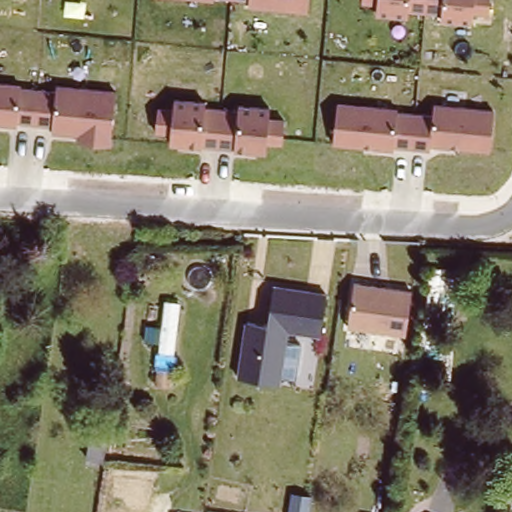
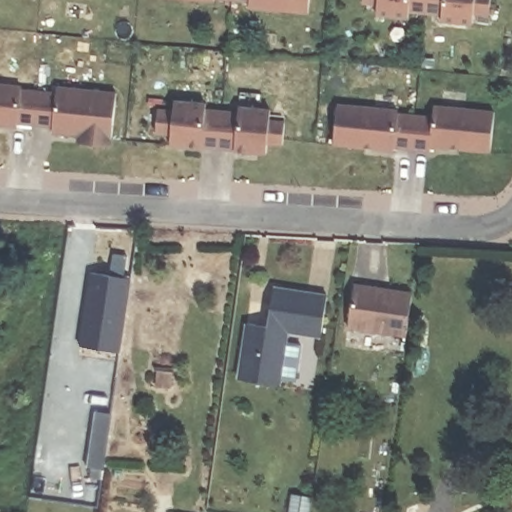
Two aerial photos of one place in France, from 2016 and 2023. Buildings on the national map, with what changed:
unchanged [(247,9),(248,1),(241,0),(310,0),(309,17),(247,9)]
unchanged [(475,14),(474,25),(441,21),(441,14),(410,11),(409,16),(378,14),(378,6),(365,4),(365,0),(493,0),(492,16),(475,14)]
unchanged [(118,92),(112,147),(75,142),(76,136),(50,133),(50,126),(20,124),(18,129),(0,126),(0,82),(118,92)]
unchanged [(172,110),(173,102),(272,109),(272,121),(285,121),(283,144),(268,142),(267,155),(168,146),(169,133),(153,131),(157,110),(172,110)]
unchanged [(432,115),(433,102),(492,110),(490,152),(432,146),(432,152),(333,144),(335,105),(432,115)]
new [(95,272),(134,278),(122,352),(82,346),(95,272)]
unchanged [(412,288),(407,335),(348,327),(355,282),(412,288)]
unchanged [(270,317),(276,283),(327,293),(320,340),(293,335),(285,382),(235,376),(244,320),(270,317)]
unchanged [(92,430),(110,432),(107,460),(88,457),(92,430)]
new [(293,495),(312,497),(310,512),(291,512),(293,495)]

